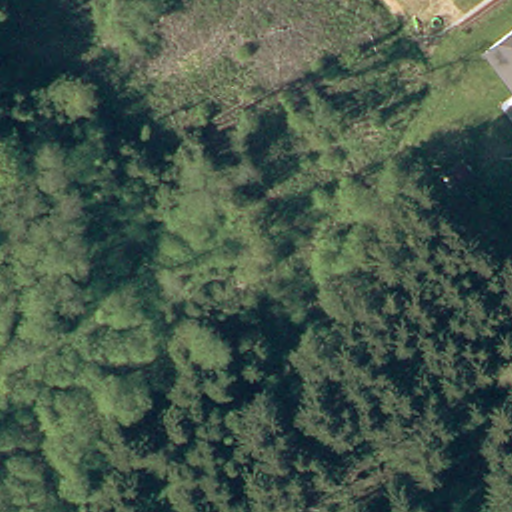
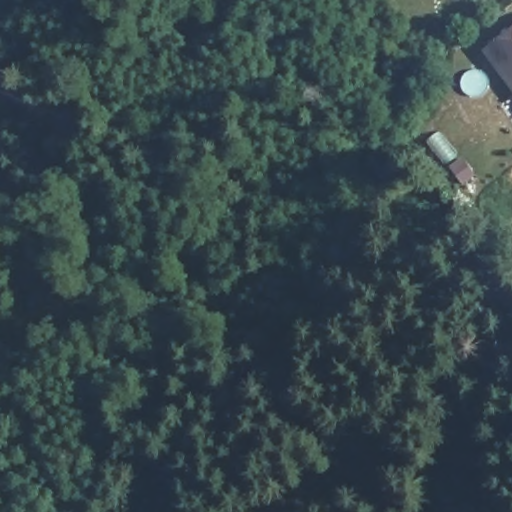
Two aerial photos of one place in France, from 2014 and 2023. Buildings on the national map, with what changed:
unchanged [(484,48),(512,28),(512,86),(484,48)]

